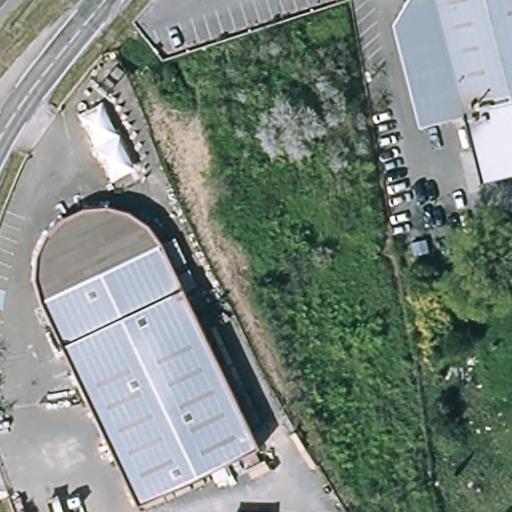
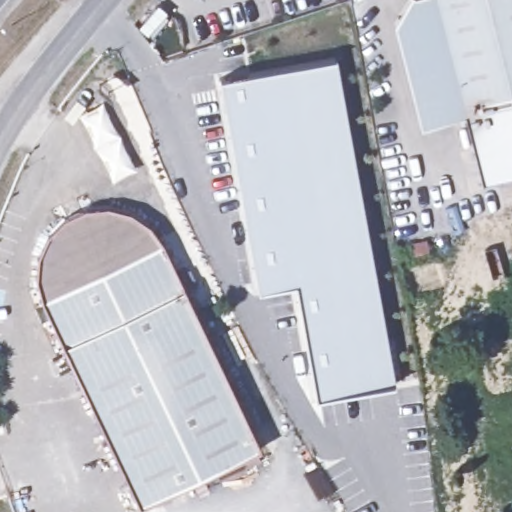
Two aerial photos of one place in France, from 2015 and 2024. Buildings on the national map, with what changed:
unchanged [(422,129),(394,12),(399,0),(436,0),(465,118),(422,129)]
unchanged [(512,0),(512,107),(465,118),(436,0),(512,0)]
new [(335,56),(394,383),(314,398),(294,283),(258,290),(219,78),(335,56)]
new [(84,121),(84,117),(102,102),(137,169),(114,181),(97,149),(84,121)]
unchanged [(512,176),(481,184),(472,144),(465,118),(512,107),(512,176)]
unchanged [(42,305),(35,280),(36,259),(45,239),(61,220),(82,210),(107,209),(127,215),(147,226),(160,245),(175,275),(186,270),(194,286),(183,291),(258,448),(140,506),(42,305)]

